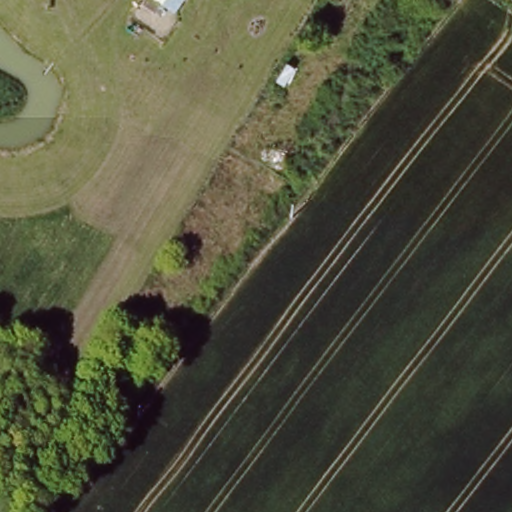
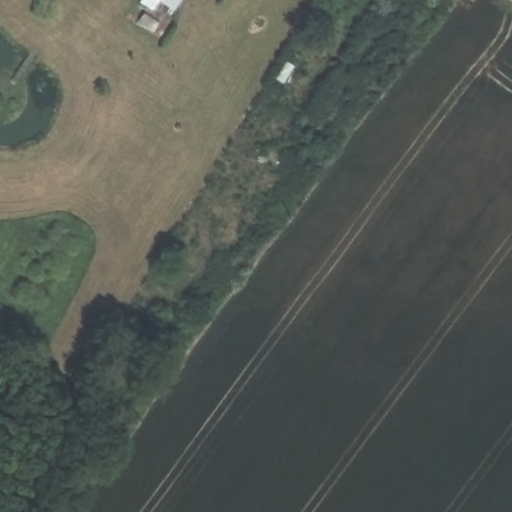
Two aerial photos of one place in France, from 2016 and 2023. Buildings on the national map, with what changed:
unchanged [(176,10),(164,2),(159,11),(142,0),(183,0),(176,10)]

